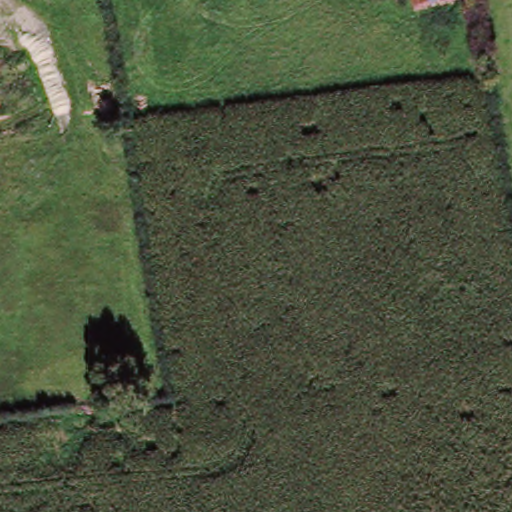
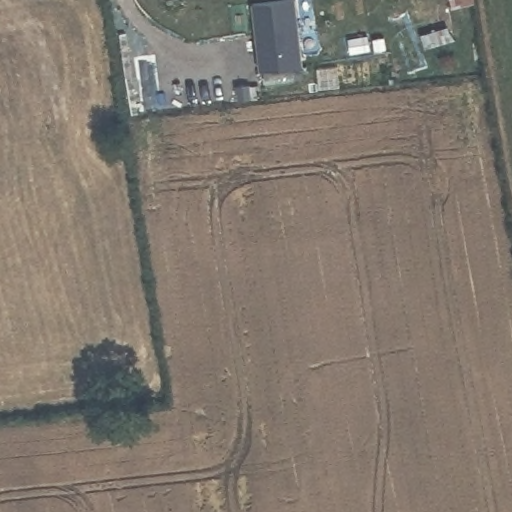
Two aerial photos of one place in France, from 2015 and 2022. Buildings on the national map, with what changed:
new [(271,0),(297,0),(305,64),(262,69),(254,2),(271,0)]
unchanged [(415,13),(413,0),(451,0),(452,6),(415,13)]
unchanged [(452,6),(451,0),(474,0),(474,2),(452,6)]

